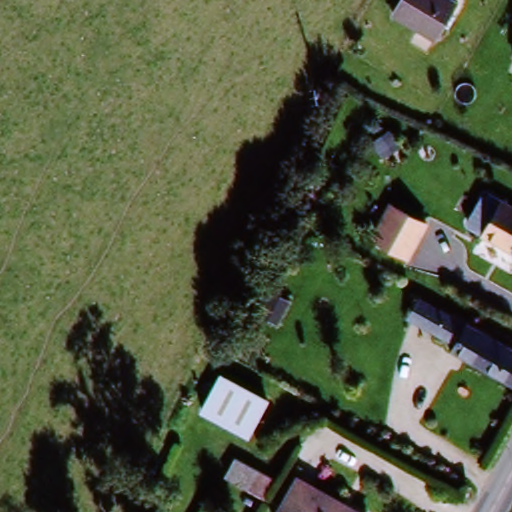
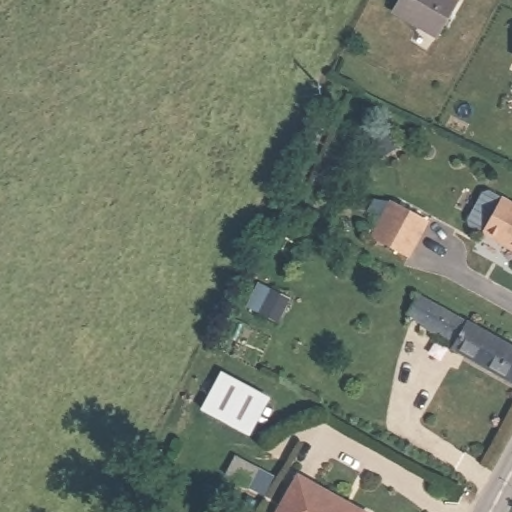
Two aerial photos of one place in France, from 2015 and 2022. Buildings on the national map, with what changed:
unchanged [(401,0),(452,0),(433,37),(392,16),(401,0)]
unchanged [(387,194),(423,211),(401,253),(366,235),(387,194)]
unchanged [(512,202),(512,246),(484,231),(502,197),(512,202)]
unchanged [(418,297),(512,346),(512,384),(468,361),(472,353),(406,318),(418,297)]
unchanged [(201,411),(220,372),(269,398),(249,437),(201,411)]
unchanged [(266,502),(224,479),(233,458),(274,477),(266,502)]
unchanged [(366,512),(284,512),(300,480),(366,512)]

